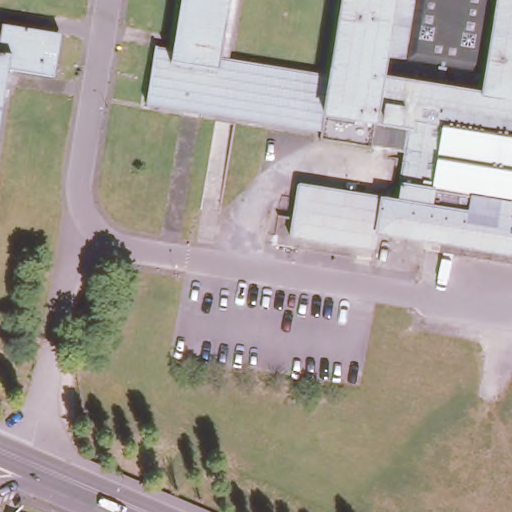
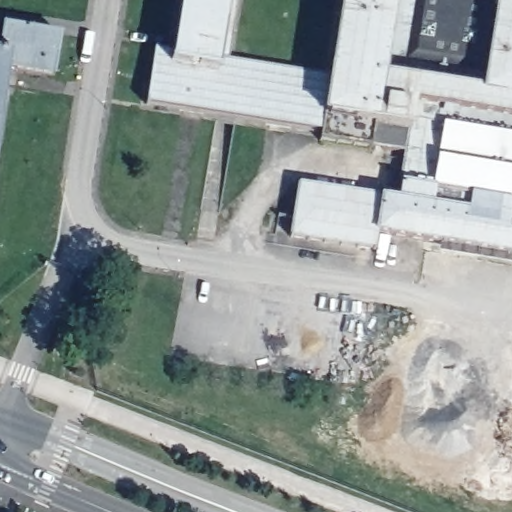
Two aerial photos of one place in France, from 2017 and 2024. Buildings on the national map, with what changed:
unchanged [(370,246),(285,234),(293,185),(391,200),(402,129),(367,123),(363,146),(315,138),(316,128),(141,99),(151,43),(167,46),(175,0),(233,0),(225,55),(325,72),(336,0),(512,0),(512,255),(371,232),(370,246)]
unchanged [(3,24),(60,33),(54,73),(8,67),(0,122),(0,48),(3,24)]

